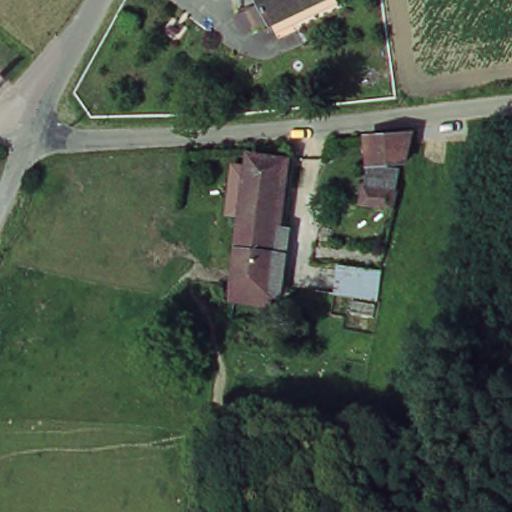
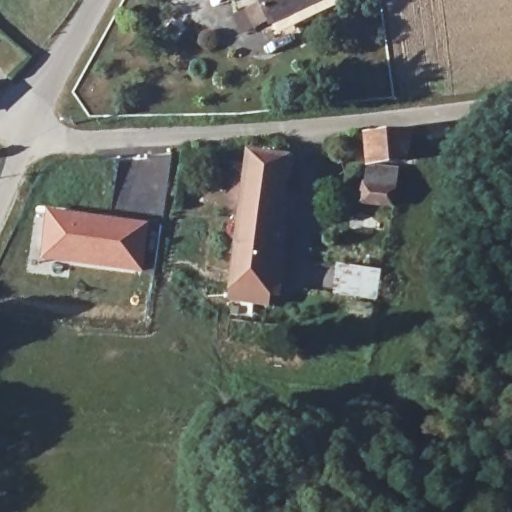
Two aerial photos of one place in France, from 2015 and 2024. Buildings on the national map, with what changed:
unchanged [(269,16),(261,0),(303,0),(269,16)]
unchanged [(371,154),(377,129),(419,129),(410,164),(371,154)]
unchanged [(301,144),(284,279),(246,273),(264,139),(301,144)]
unchanged [(373,161),(404,167),(397,202),(366,195),(373,161)]
new [(145,271),(45,257),(50,212),(150,225),(145,271)]
new [(335,263),(381,268),(377,300),(331,293),(335,263)]

